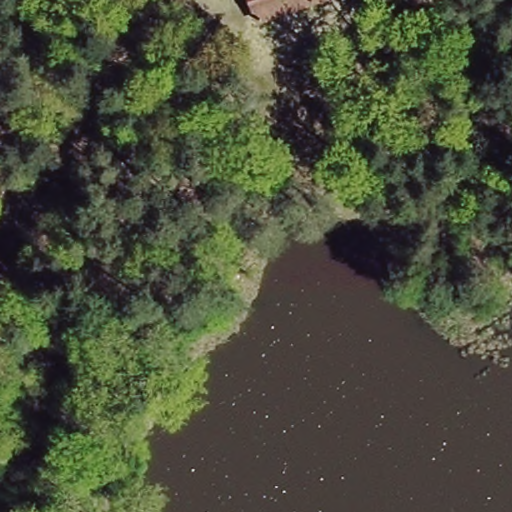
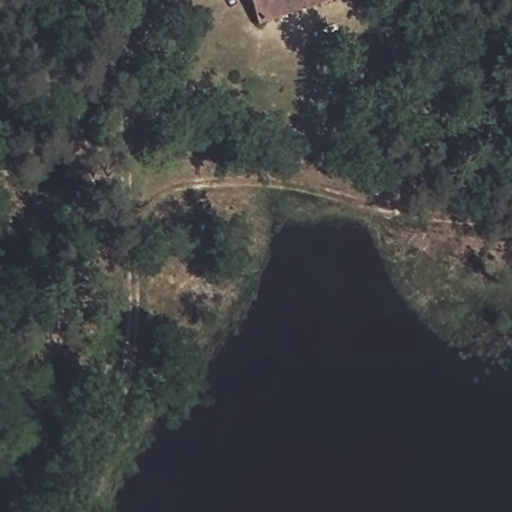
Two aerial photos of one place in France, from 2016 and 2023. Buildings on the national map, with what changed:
unchanged [(258,29),(246,0),(329,0),(258,29)]

